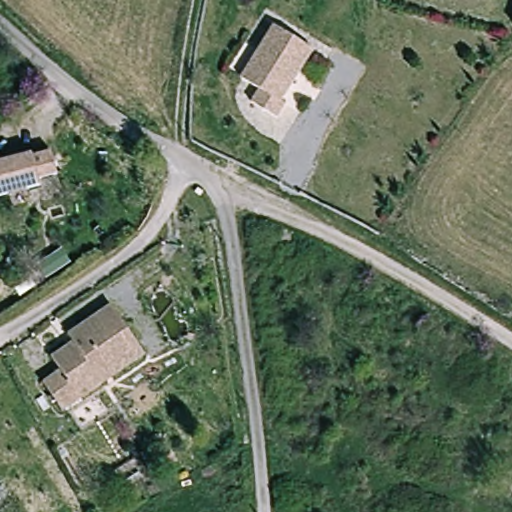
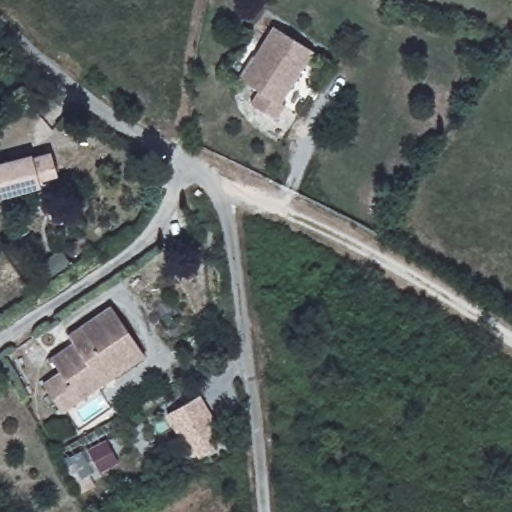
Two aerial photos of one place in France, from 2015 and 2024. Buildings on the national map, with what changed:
unchanged [(264,91),(249,83),(281,30),(317,51),(285,105),(290,107),(282,120),(256,105),(264,91)]
unchanged [(0,195),(0,158),(9,156),(32,150),(34,155),(52,150),(58,172),(40,177),(42,184),(0,195)]
unchanged [(98,386),(58,414),(42,391),(61,378),(50,362),(72,347),(65,338),(109,308),(135,345),(142,356),(98,386)]
new [(222,442),(192,458),(170,415),(199,399),(222,442)]
new [(106,441),(117,462),(100,471),(90,450),(106,441)]

